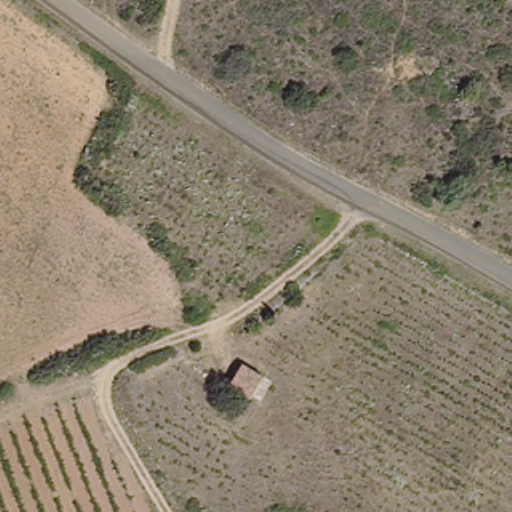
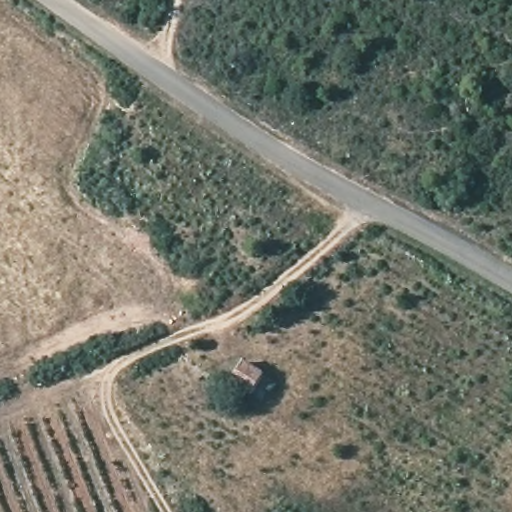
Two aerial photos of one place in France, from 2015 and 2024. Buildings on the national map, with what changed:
unchanged [(247,389),(227,373),(239,354),(260,369),(247,389)]

